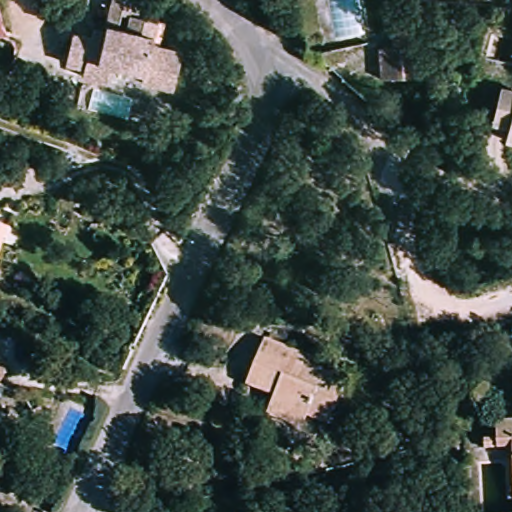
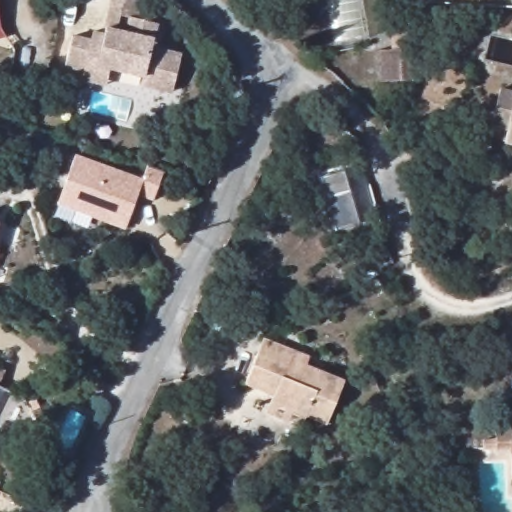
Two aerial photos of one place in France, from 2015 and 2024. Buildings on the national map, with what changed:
unchanged [(72,42),(92,45),(93,36),(105,38),(106,32),(112,0),(119,0),(140,3),(137,21),(155,25),(151,49),(181,54),(174,91),(142,85),(144,77),(112,71),(108,88),(83,83),(85,75),(67,72),(72,42)]
unchanged [(408,2),(408,0),(433,0),(432,4),(408,2)]
unchanged [(377,48),(393,48),(392,32),(410,30),(417,80),(380,84),(377,48)]
unchanged [(482,123),(495,84),(512,89),(512,145),(498,141),(502,129),(482,123)]
new [(148,166),(165,174),(153,202),(138,195),(125,230),(57,205),(75,154),(143,179),(148,166)]
unchanged [(0,221),(4,223),(0,232),(0,221)]
unchanged [(262,414),(267,400),(270,394),(240,383),(257,338),(287,348),(306,353),(302,363),(345,377),(330,420),(308,413),(302,427),(262,414)]
unchanged [(0,379),(0,371),(3,373),(0,379)]
unchanged [(512,436),(512,500),(502,499),(507,464),(492,462),(496,435),(512,436)]

